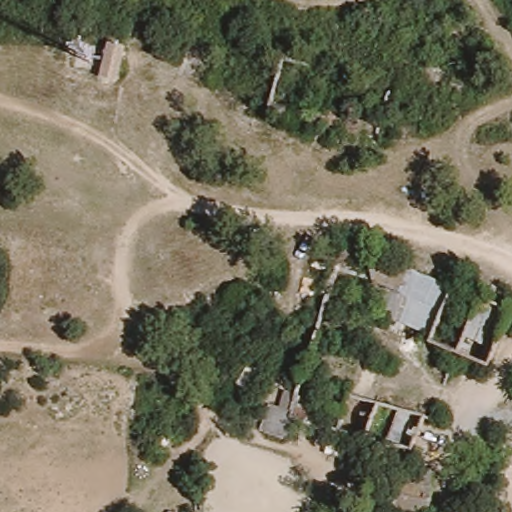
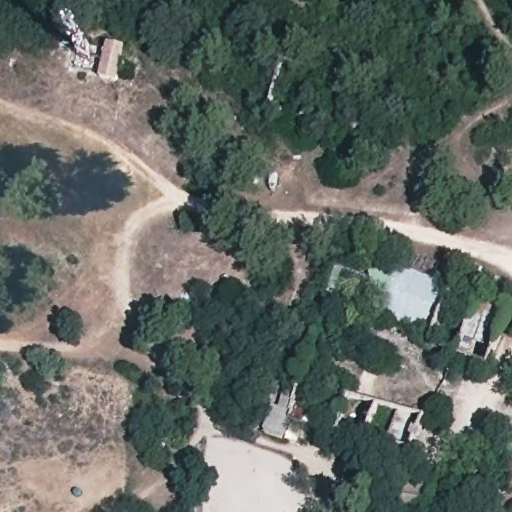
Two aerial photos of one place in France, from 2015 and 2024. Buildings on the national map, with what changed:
unchanged [(127,47),(119,82),(100,77),(107,43),(127,47)]
unchanged [(431,339),(380,319),(363,257),(365,257),(450,291),(431,339)]
unchanged [(295,411),(284,440),(265,433),(261,432),(272,402),(291,409),(295,411)]
unchanged [(427,512),(388,512),(397,464),(436,473),(439,474),(427,512)]

